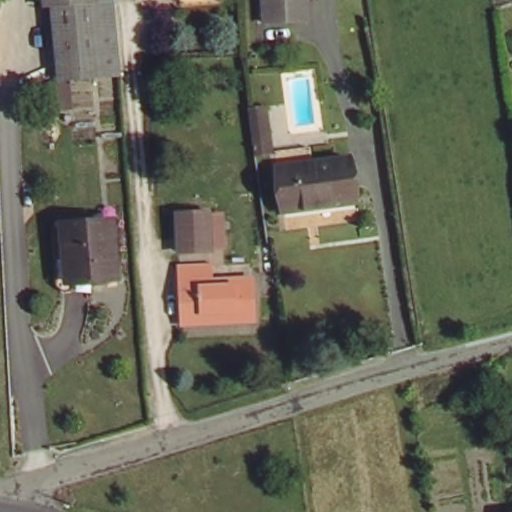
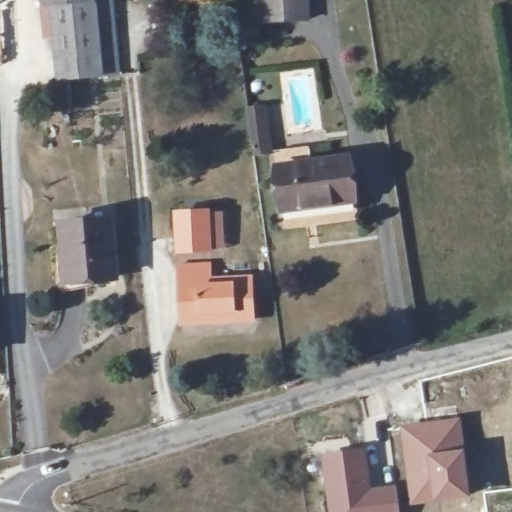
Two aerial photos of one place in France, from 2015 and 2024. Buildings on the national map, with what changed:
unchanged [(60,84),(54,2),(48,3),(47,0),(98,0),(104,81),(60,84)]
unchanged [(98,0),(118,0),(126,79),(104,81),(98,0)]
unchanged [(261,0),(315,0),(317,21),(263,21),(261,0)]
unchanged [(312,163),(353,159),(355,198),(284,206),(280,166),(261,169),(259,149),(254,105),(272,103),(277,146),(310,141),(312,163)]
unchanged [(64,218),(116,215),(120,275),(69,278),(64,218)]
unchanged [(208,216),(213,253),(182,257),(177,220),(208,216)]
unchanged [(211,269),(213,286),(256,279),(261,320),(193,329),(184,272),(211,269)]
new [(460,417),(470,498),(410,506),(400,425),(460,417)]
new [(365,446),(372,487),(395,484),(399,512),(327,512),(320,454),(365,446)]
unchanged [(510,511),(512,510),(512,512),(510,512),(510,511)]

